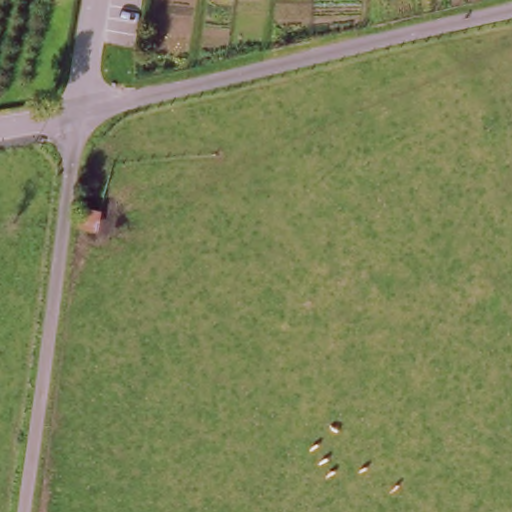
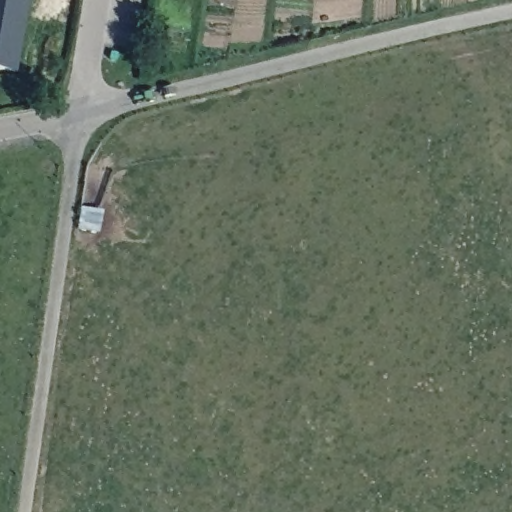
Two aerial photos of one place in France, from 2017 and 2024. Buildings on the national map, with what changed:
new [(0,71),(0,0),(29,0),(17,74),(0,71)]

